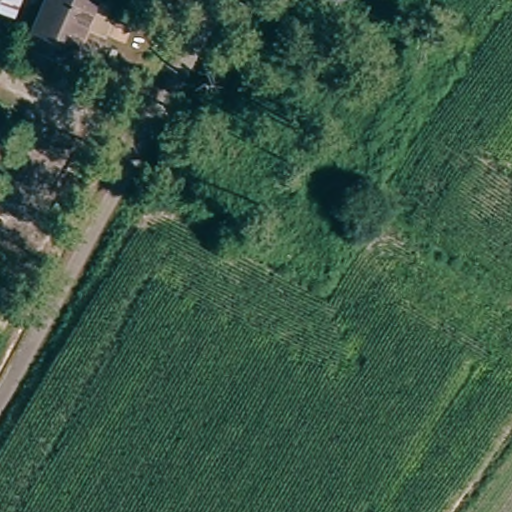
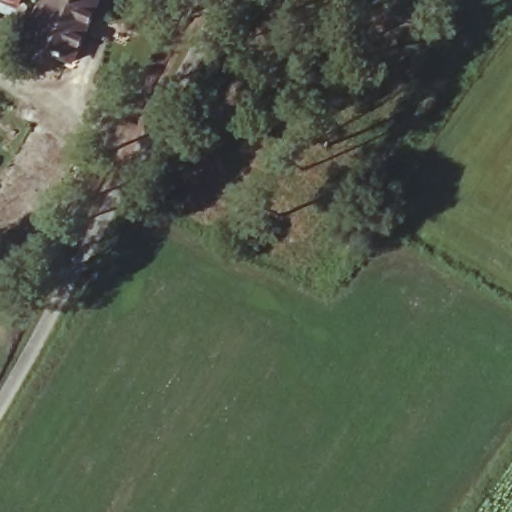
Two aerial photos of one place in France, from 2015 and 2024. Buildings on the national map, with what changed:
unchanged [(14,17),(0,13),(0,0),(21,0),(14,17)]
unchanged [(103,0),(70,61),(25,46),(44,0),(102,0),(103,0)]

